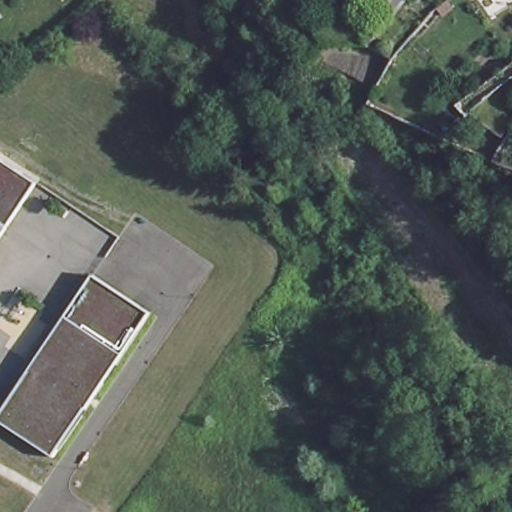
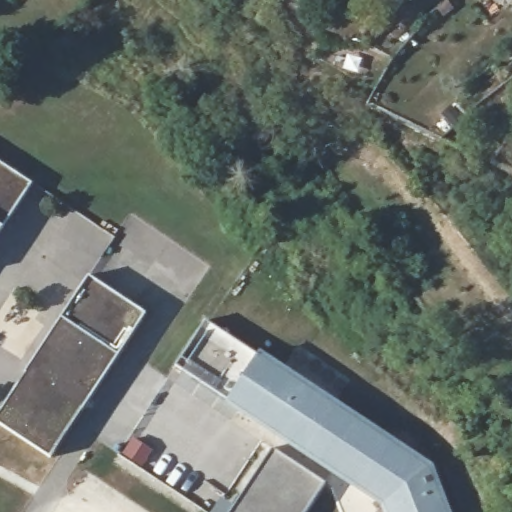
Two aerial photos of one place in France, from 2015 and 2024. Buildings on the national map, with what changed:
unchanged [(413,9),(412,9),(401,0),(421,0),(413,9)]
unchanged [(468,3),(470,1),(469,0),(492,0),(486,5),(477,11),(468,3)]
unchanged [(1,228),(0,229),(0,162),(32,183),(1,228)]
unchanged [(50,457),(0,423),(0,412),(88,277),(144,314),(50,457)]
new [(225,404),(175,367),(206,321),(257,355),(260,351),(432,465),(450,512),(382,512),(380,507),(225,404)]
new [(322,483),(303,512),(230,512),(271,450),(322,483)]

